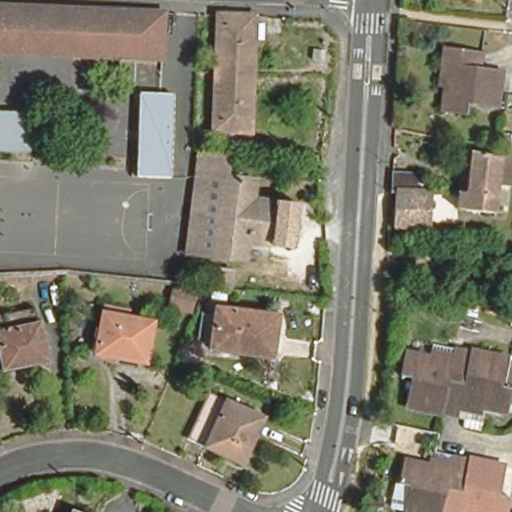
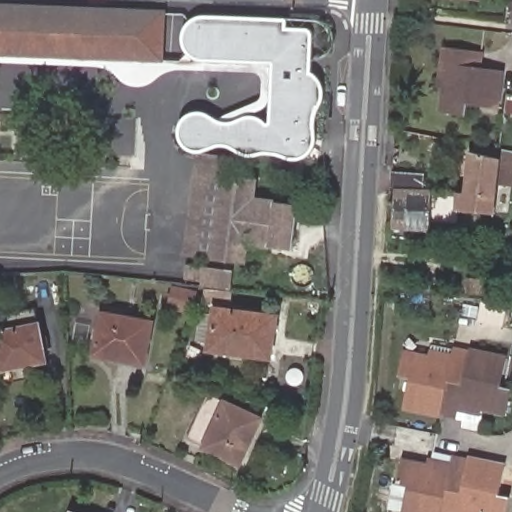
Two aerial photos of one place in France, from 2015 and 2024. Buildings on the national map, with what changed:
unchanged [(474,0),(473,5),(446,0),(474,0)]
unchanged [(75,6),(73,53),(0,49),(0,3),(8,3),(75,6)]
unchanged [(75,6),(162,11),(160,58),(73,53),(75,6)]
new [(180,36),(183,29),(187,21),(194,16),(201,15),(285,18),(287,18),(287,26),(307,28),(310,30),(313,34),(312,71),(316,74),(319,78),(323,85),(324,91),(322,103),(317,114),(316,121),(317,135),(317,143),(314,150),(308,156),(300,160),(292,160),(282,157),(272,155),(260,156),(251,156),(241,154),(230,148),(223,146),(217,147),(205,151),(197,153),(190,151),(182,145),(178,138),(177,130),(179,121),(186,115),(192,112),(200,111),(209,113),(217,119),(223,121),(231,121),(240,117),(247,115),(253,115),(263,118),(267,121),(268,121),(269,63),(201,60),(191,57),(185,53),(182,46),(180,36)]
demolished [(253,21),(247,134),(209,132),(215,19),(253,21)]
unchanged [(486,61),(506,64),(502,101),(474,99),(472,109),(449,106),(453,79),(445,79),(449,43),(456,43),(487,48),(486,61)]
demolished [(154,174),(153,177),(131,175),(136,91),(158,93),(154,174)]
demolished [(170,94),(166,177),(153,177),(154,174),(158,93),(170,94)]
new [(23,115),(21,155),(0,154),(0,114),(23,115)]
unchanged [(464,183),(472,184),(477,144),(483,144),(484,135),(500,139),(508,140),(497,207),(491,206),(463,204),(464,183)]
unchanged [(216,182),(193,179),(195,156),(227,159),(225,182),(253,185),(251,201),(296,206),(292,247),(247,243),(245,259),(208,256),(216,182)]
unchanged [(397,165),(428,166),(426,182),(455,183),(464,183),(463,204),(462,223),(398,220),(396,238),(394,238),(397,180),(397,165)]
unchanged [(187,254),(193,179),(216,182),(208,256),(187,254)]
unchanged [(235,284),(207,281),(207,277),(191,276),(192,264),(236,269),(235,284)]
unchanged [(200,281),(197,309),(171,305),(174,278),(200,281)]
unchanged [(275,316),(270,357),(209,350),(214,308),(275,316)]
unchanged [(34,310),(45,362),(2,371),(0,358),(0,316),(34,310)]
unchanged [(151,328),(144,367),(96,358),(104,318),(151,328)]
unchanged [(460,406),(409,396),(414,368),(402,366),(407,342),(433,347),(434,339),(456,343),(457,336),(509,347),(503,376),(512,378),(512,391),(510,401),(484,396),(482,404),(461,400),(460,406)]
unchanged [(265,420),(243,465),(190,440),(211,394),(265,420)]
unchanged [(457,508),(456,512),(448,512),(404,504),(410,477),(400,475),(405,450),(428,455),(430,447),(452,451),(454,444),(506,455),(500,484),(511,486),(506,512),(481,506),(480,512),(457,508)]

